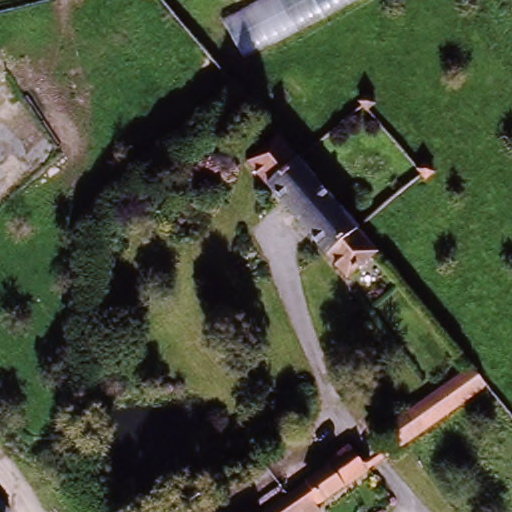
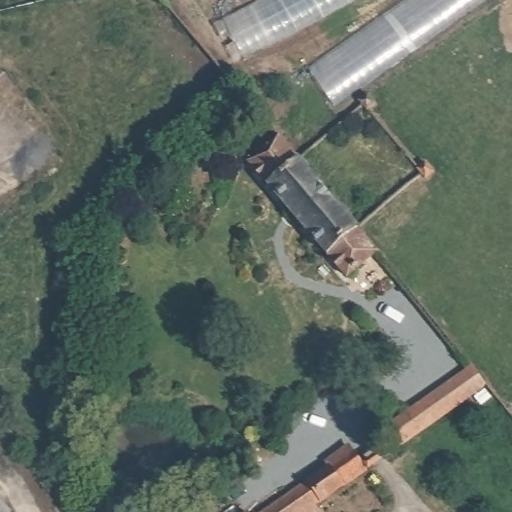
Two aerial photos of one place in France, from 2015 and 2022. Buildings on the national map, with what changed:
unchanged [(227,67),(205,24),(234,10),(229,0),(357,0),(227,67)]
new [(334,107),(307,70),(408,0),(488,0),(334,107)]
unchanged [(252,166),(282,141),(290,150),(298,161),(356,228),(380,257),(347,283),(252,166)]
unchanged [(465,371),(483,392),(396,451),(383,428),(465,371)]
unchanged [(336,494),(322,474),(361,447),(375,467),(336,494)]
unchanged [(310,512),(267,512),(322,474),(336,494),(310,512)]

